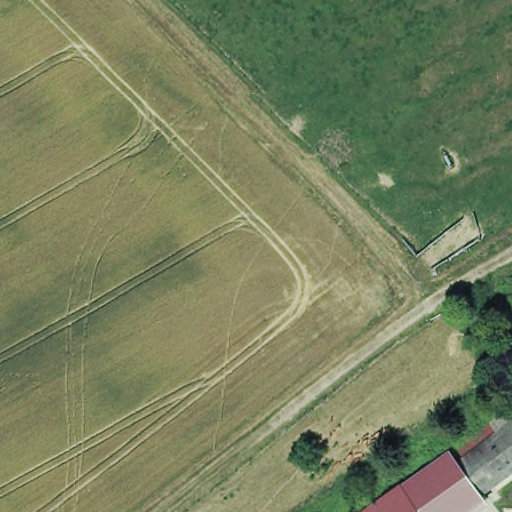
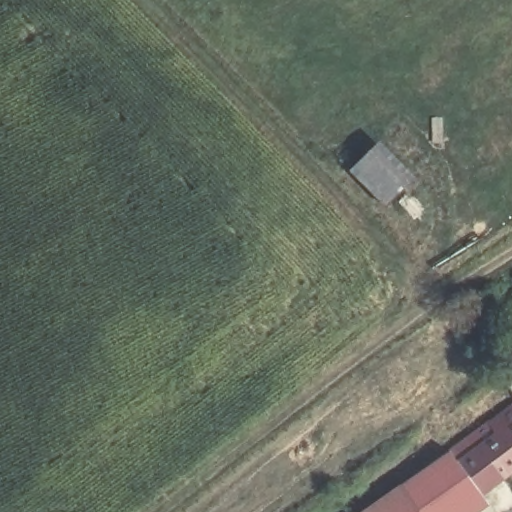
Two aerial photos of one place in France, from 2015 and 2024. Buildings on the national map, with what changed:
new [(416,177),(383,210),(346,175),(376,140),(416,177)]
unchanged [(490,421),(512,405),(512,470),(482,492),(458,460),(497,431),(490,421)]
unchanged [(366,512),(442,458),(472,501),(458,512),(425,512),(423,508),(418,512),(366,512)]

